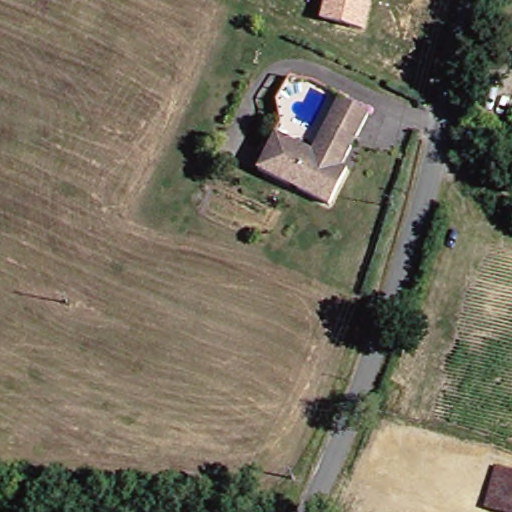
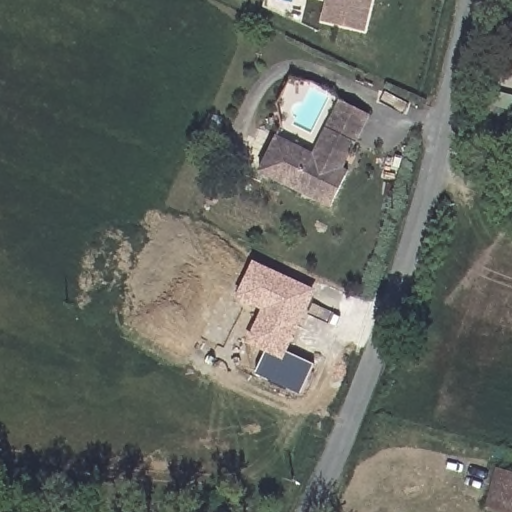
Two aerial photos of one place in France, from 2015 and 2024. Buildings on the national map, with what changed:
unchanged [(364,31),(325,22),(329,0),(371,0),(364,31)]
unchanged [(343,98),(373,112),(350,163),(356,166),(338,204),(265,170),(273,152),(282,135),(299,142),(318,152),(343,98)]
new [(266,352),(245,343),(261,309),(235,297),(253,261),(316,290),(287,352),(313,365),(300,395),(256,373),(266,352)]
unchanged [(504,471),(512,474),(512,512),(502,512),(494,510),(504,471)]

